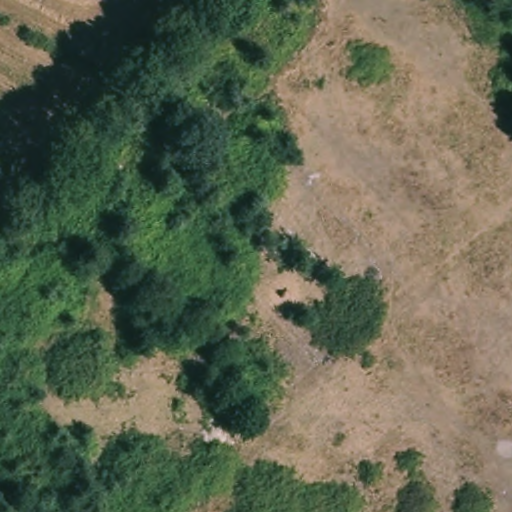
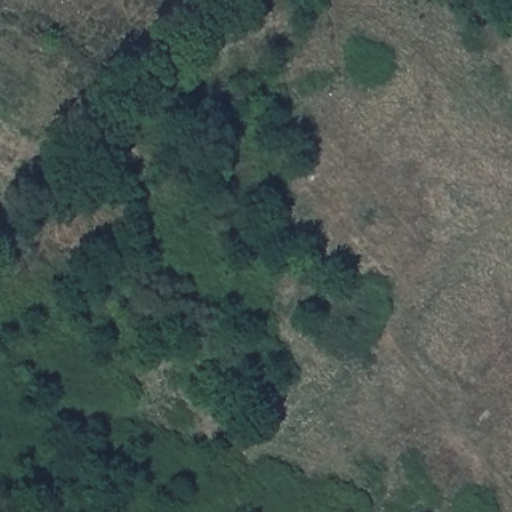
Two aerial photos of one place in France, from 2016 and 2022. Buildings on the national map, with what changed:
[]

